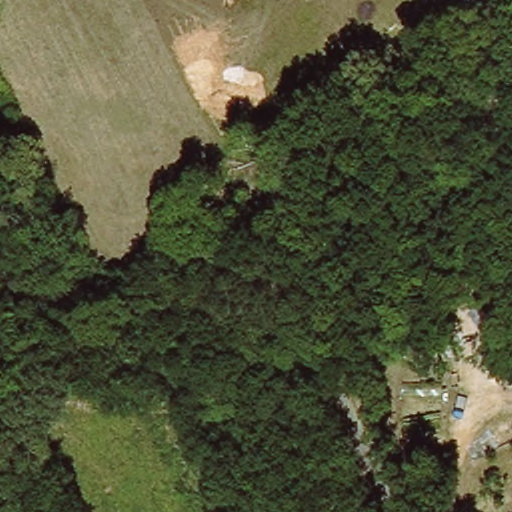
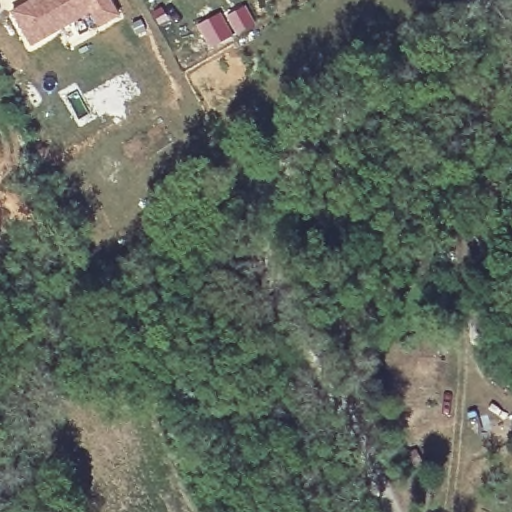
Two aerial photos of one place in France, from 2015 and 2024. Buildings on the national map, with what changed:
new [(112,0),(120,14),(97,27),(88,13),(30,46),(9,10),(27,0),(112,0)]

